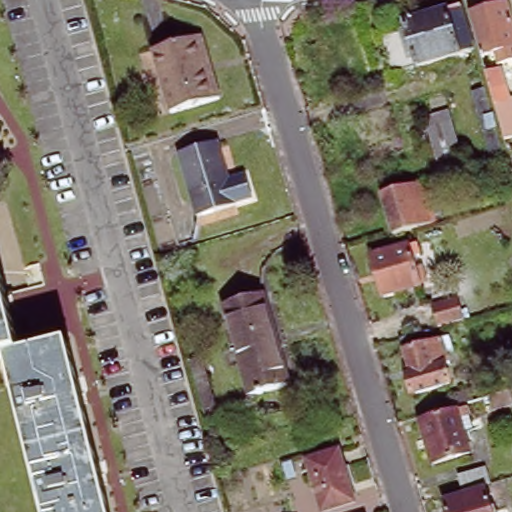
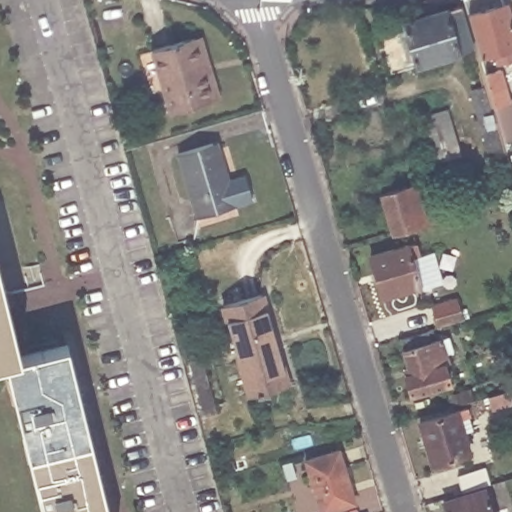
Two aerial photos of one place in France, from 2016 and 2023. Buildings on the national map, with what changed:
unchanged [(512,35),(512,72),(509,73),(504,57),(481,63),(480,59),(469,20),(505,10),(512,35)]
unchanged [(416,74),(416,72),(395,79),(395,80),(392,81),(381,44),(406,36),(405,31),(460,14),(473,56),(416,74)]
unchanged [(212,79),(218,79),(225,104),(176,116),(158,54),(202,44),(212,79)]
unchanged [(486,75),(500,72),(509,104),(501,106),(507,128),(509,128),(512,138),(505,140),(486,75)]
unchanged [(494,170),(491,160),(472,94),(485,90),(504,156),(507,166),(494,170)]
unchanged [(426,131),(450,125),(461,160),(441,165),(437,166),(431,146),(426,131)]
unchanged [(223,183),(227,182),(234,207),(196,218),(178,154),(212,144),(223,183)]
unchanged [(383,194),(409,185),(424,181),(427,189),(428,196),(436,222),(394,234),(383,194)]
unchanged [(420,254),(412,256),(421,285),(384,295),(372,254),(409,244),(409,246),(417,244),(420,254)]
unchanged [(26,359),(70,348),(112,512),(48,512),(10,363),(0,365),(0,267),(26,359)]
unchanged [(261,300),(288,392),(248,403),(222,312),(261,300)]
unchanged [(440,332),(435,309),(459,302),(464,324),(440,332)]
unchanged [(433,335),(436,347),(454,342),(457,353),(453,354),(457,368),(452,369),(457,386),(417,398),(412,379),(418,378),(408,343),(433,335)]
unchanged [(512,396),(512,407),(492,413),(488,399),(511,393),(512,396)]
unchanged [(461,418),(465,431),(460,433),(465,452),(430,463),(417,421),(463,407),(465,416),(461,418)]
unchanged [(340,453),(355,506),(333,512),(320,512),(306,463),(340,453)]
unchanged [(464,481),(490,473),(495,487),(469,496),(464,481)]
unchanged [(490,492),(496,512),(454,512),(452,504),(490,492)]

